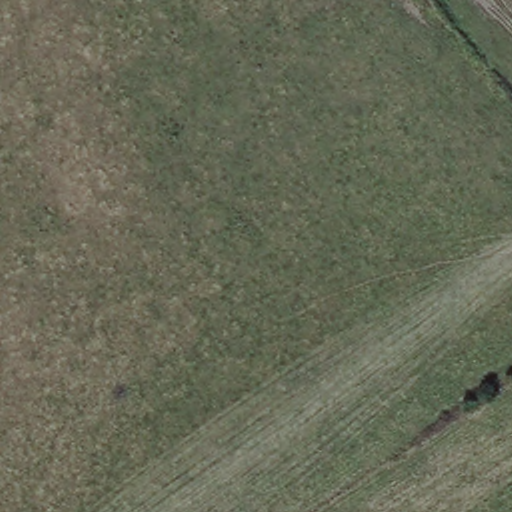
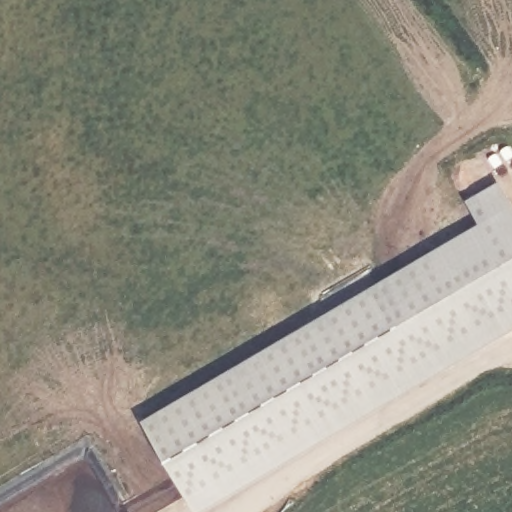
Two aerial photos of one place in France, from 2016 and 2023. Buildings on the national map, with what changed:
new [(479,217),(461,188),(492,169),(512,204),(512,343),(210,512),(190,512),(138,417),(479,217)]

